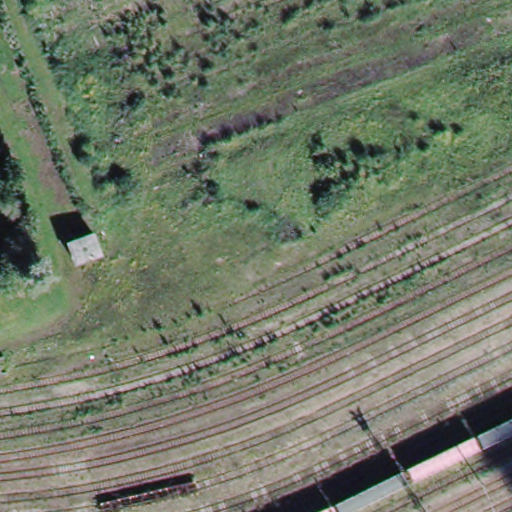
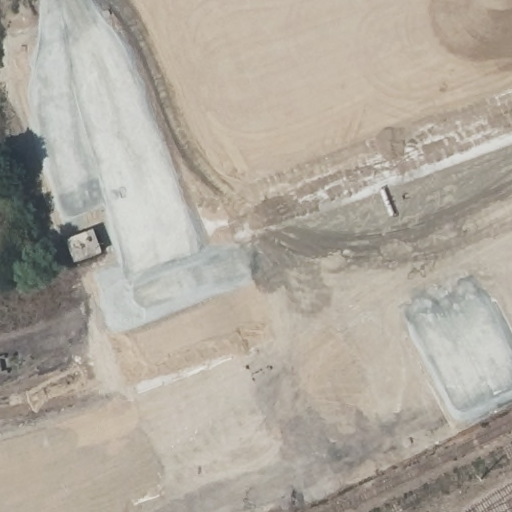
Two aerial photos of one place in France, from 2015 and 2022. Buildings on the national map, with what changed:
unchanged [(70,244),(95,234),(104,256),(79,266),(70,244)]

